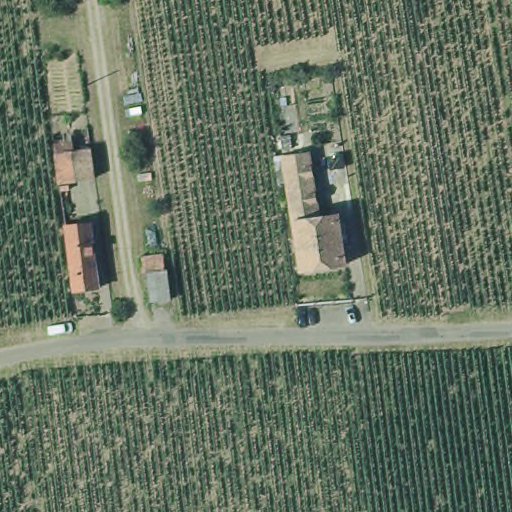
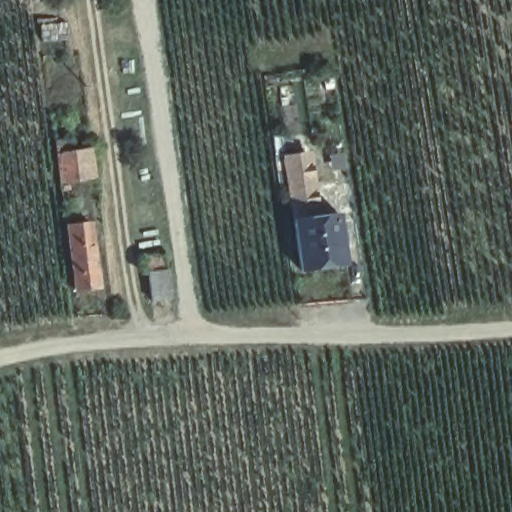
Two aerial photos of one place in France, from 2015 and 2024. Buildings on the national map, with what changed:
unchanged [(297,142),(288,144),(287,130),(296,129),(297,142)]
unchanged [(55,152),(53,141),(70,140),(72,151),(90,149),(94,179),(77,180),(58,183),(55,152)]
unchanged [(305,265),(298,214),(293,181),(292,175),(282,176),(277,146),(288,145),(289,150),(310,147),(315,179),(318,179),(323,210),(343,207),(350,258),(305,265)]
unchanged [(97,290),(75,291),(64,225),(90,223),(97,290)]
unchanged [(160,256),(161,255),(163,269),(160,256)]
unchanged [(166,268),(170,300),(166,300),(150,301),(145,271),(140,272),(138,258),(160,256),(161,269),(163,269),(166,268)]

